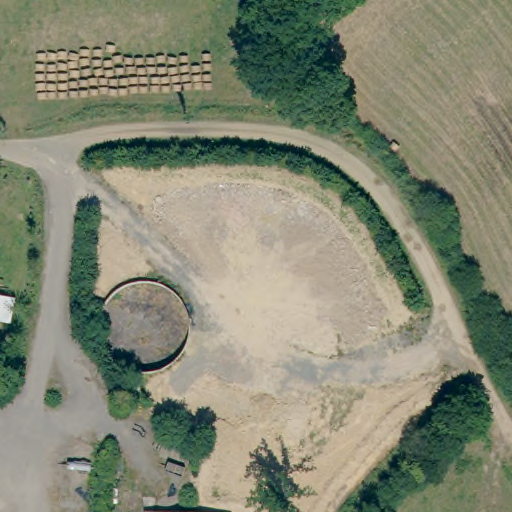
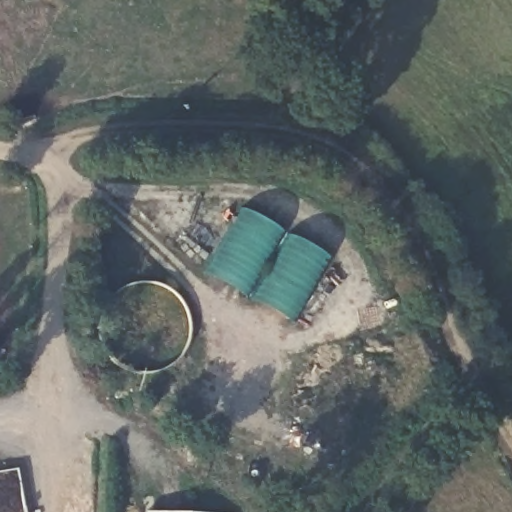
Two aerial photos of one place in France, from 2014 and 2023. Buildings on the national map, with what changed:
new [(239,208),(332,260),(297,323),(203,272),(239,208)]

